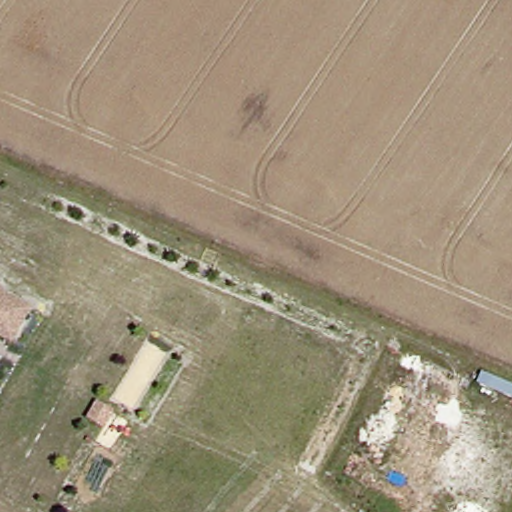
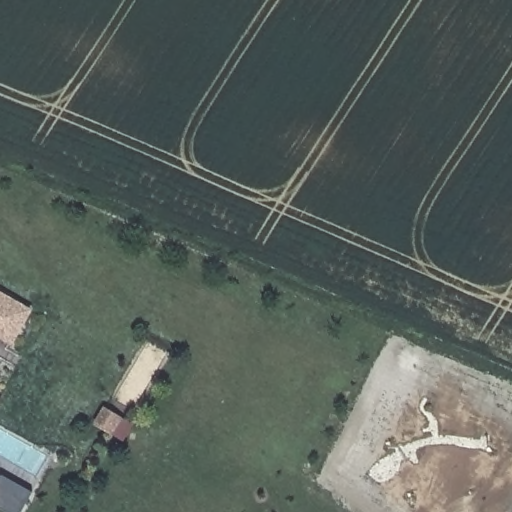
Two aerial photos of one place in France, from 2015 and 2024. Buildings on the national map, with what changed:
unchanged [(32,310),(13,345),(0,337),(0,292),(32,310)]
new [(2,480),(4,475),(34,492),(22,512),(13,512),(0,505),(0,479),(2,480)]

